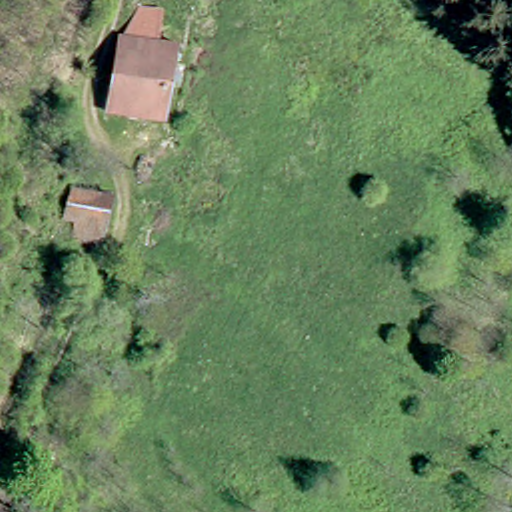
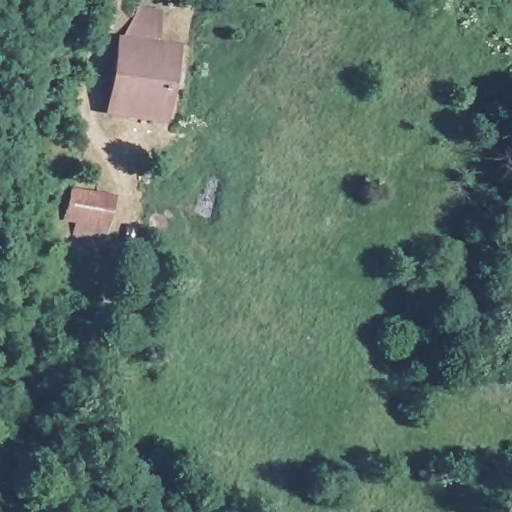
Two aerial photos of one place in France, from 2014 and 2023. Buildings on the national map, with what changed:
unchanged [(116,59),(117,56),(134,28),(187,35),(183,53),(181,63),(175,63),(160,139),(105,131),(116,59)]
unchanged [(111,190),(102,220),(62,212),(70,183),(111,190)]

